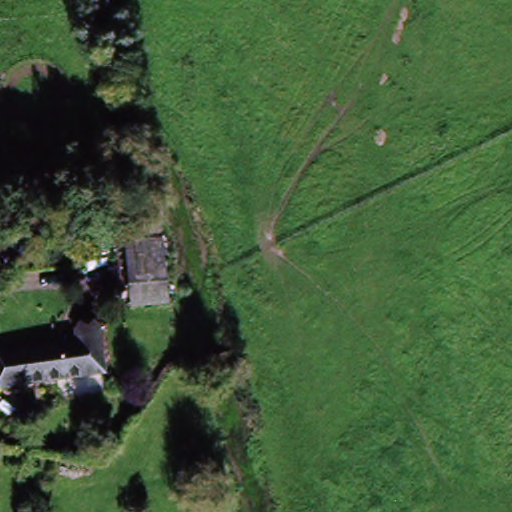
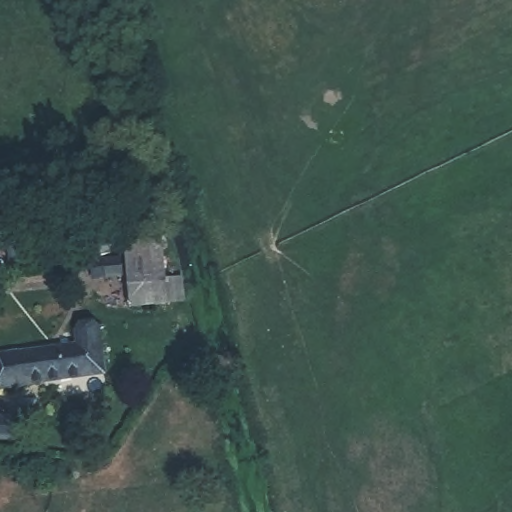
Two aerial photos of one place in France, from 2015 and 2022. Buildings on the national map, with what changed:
unchanged [(120,240),(158,240),(171,299),(138,302),(136,286),(125,286),(120,240)]
unchanged [(74,351),(73,335),(105,332),(109,381),(3,390),(1,357),(74,351)]

